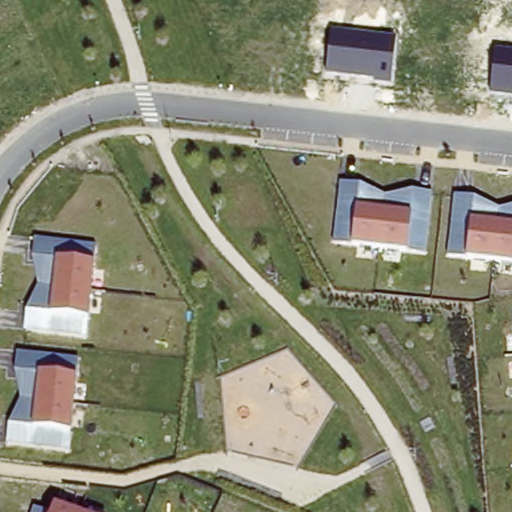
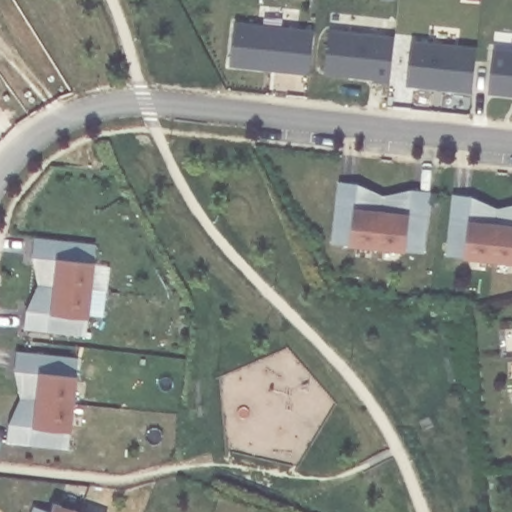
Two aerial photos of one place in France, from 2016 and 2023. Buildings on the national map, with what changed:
new [(237,24),(317,32),(312,75),(232,66),(237,24)]
unchanged [(372,84),(374,79),(327,74),(332,30),(395,36),(390,85),(372,84)]
new [(415,42),(480,50),(476,93),(410,85),(415,42)]
unchanged [(497,50),(512,52),(512,95),(492,92),(497,50)]
unchanged [(340,180),(358,181),(384,196),(411,188),(431,191),(425,255),(332,244),(340,180)]
unchanged [(472,195),(497,209),(512,205),(512,264),(447,255),(454,194),(472,195)]
unchanged [(25,307),(39,283),(32,256),(34,237),(95,244),(85,337),(23,330),(25,307)]
unchanged [(7,424),(21,397),(15,371),(16,352),(77,358),(69,450),(5,444),(7,424)]
unchanged [(49,511),(52,500),(89,512),(30,512),(32,506),(49,511)]

